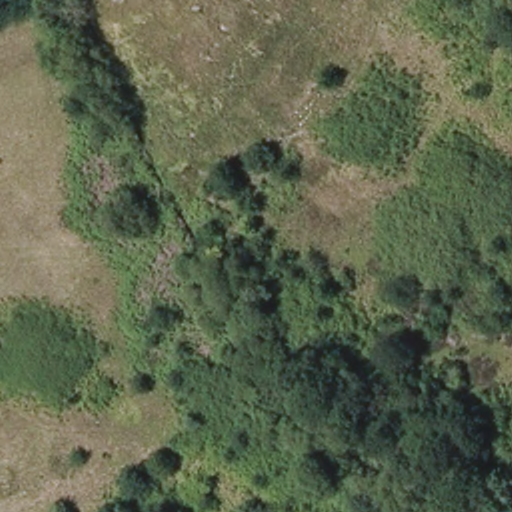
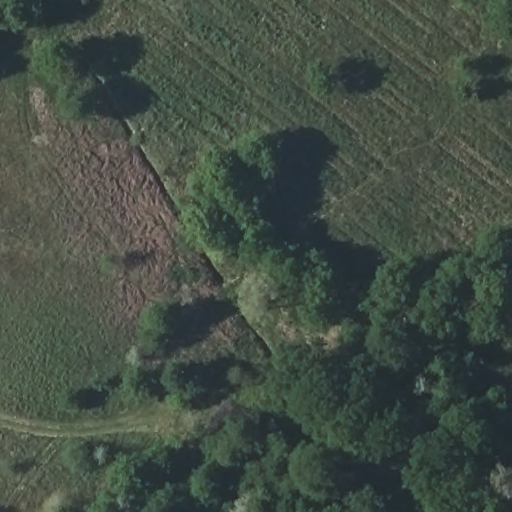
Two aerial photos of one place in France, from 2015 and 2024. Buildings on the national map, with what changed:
[]

